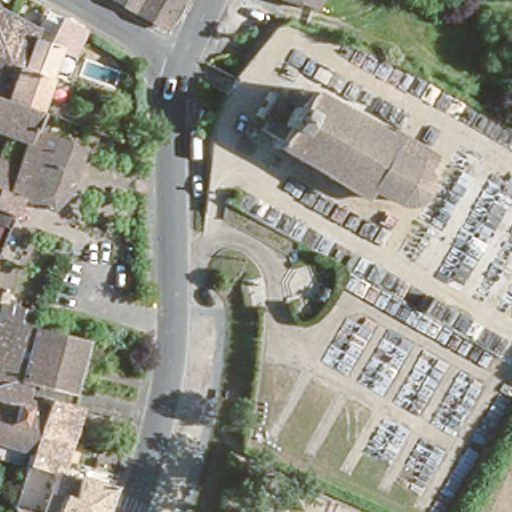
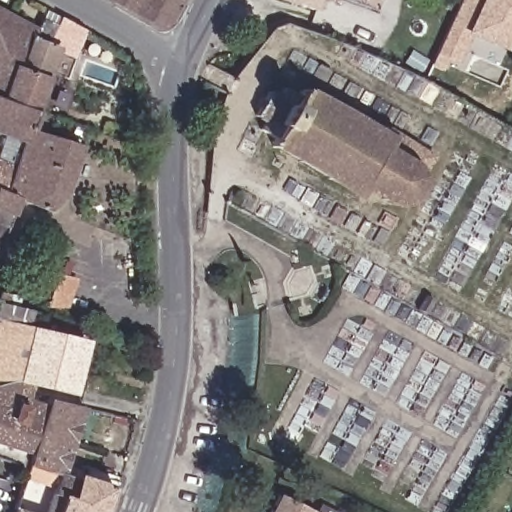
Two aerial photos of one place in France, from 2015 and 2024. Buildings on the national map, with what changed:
unchanged [(0,0),(5,2),(0,13),(0,0)]
unchanged [(169,21),(132,0),(178,0),(169,21)]
unchanged [(311,9),(287,0),(315,0),(311,9)]
new [(461,64),(440,55),(464,0),(512,0),(512,44),(508,53),(473,37),(461,64)]
unchanged [(36,107),(0,95),(0,13),(5,2),(36,17),(39,10),(51,17),(76,29),(45,110),(36,107)]
unchanged [(265,138),(273,124),(251,110),(261,92),(273,99),(279,89),(290,95),(297,83),(375,129),(388,137),(381,150),(413,171),(412,182),(405,193),(393,200),(360,183),(355,191),(289,152),(265,138)]
unchanged [(0,201),(0,155),(9,158),(19,133),(0,126),(0,95),(36,107),(45,110),(37,126),(1,202),(0,201)]
unchanged [(67,137),(84,143),(65,190),(42,200),(25,194),(0,251),(0,205),(1,202),(37,126),(67,137)]
unchanged [(15,307),(46,315),(44,329),(96,344),(85,387),(36,376),(31,395),(49,400),(45,413),(32,456),(0,446),(0,326),(9,328),(15,307)]
unchanged [(32,456),(45,413),(49,400),(50,394),(87,402),(67,466),(110,479),(101,512),(33,512),(16,507),(32,456)]
new [(315,512),(268,512),(278,493),(315,512)]
new [(339,512),(315,512),(319,502),(339,512)]
unchanged [(15,512),(16,507),(33,512),(15,512)]

